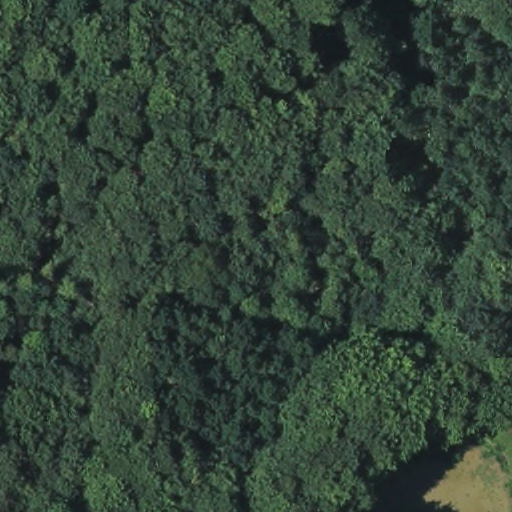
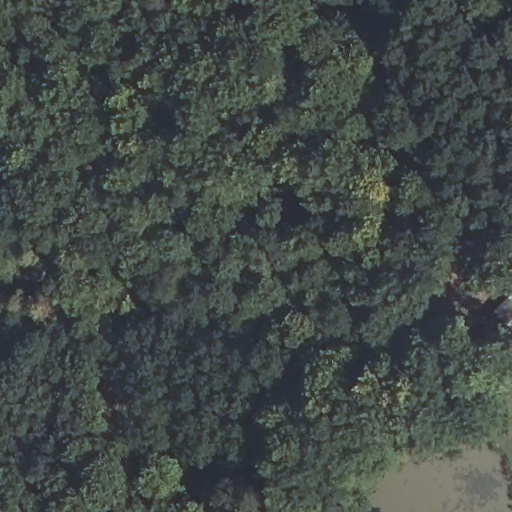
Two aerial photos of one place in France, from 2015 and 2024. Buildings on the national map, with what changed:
unchanged [(502,327),(512,317),(512,336),(502,327)]

